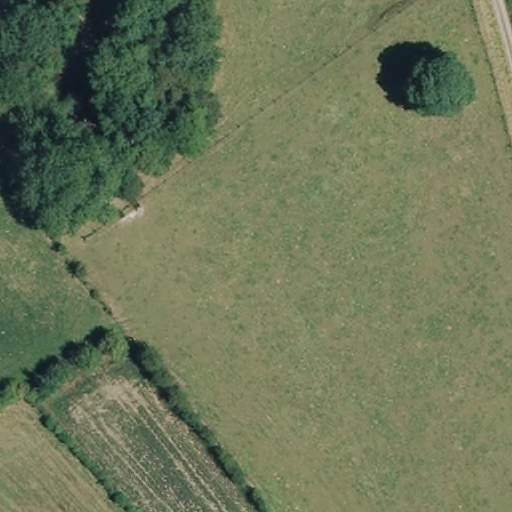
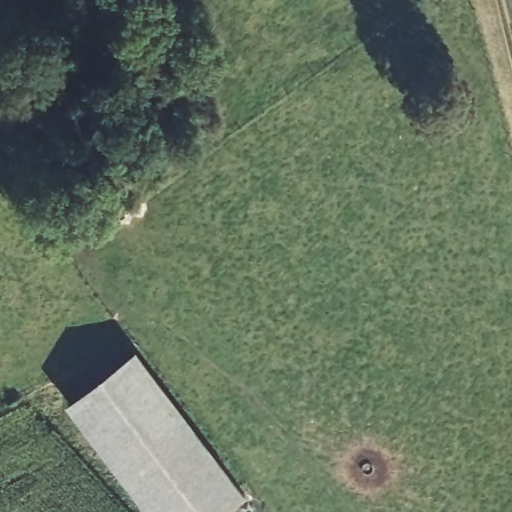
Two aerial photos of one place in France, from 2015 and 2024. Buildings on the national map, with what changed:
new [(247,491),(221,512),(151,512),(67,401),(136,346),(247,491)]

